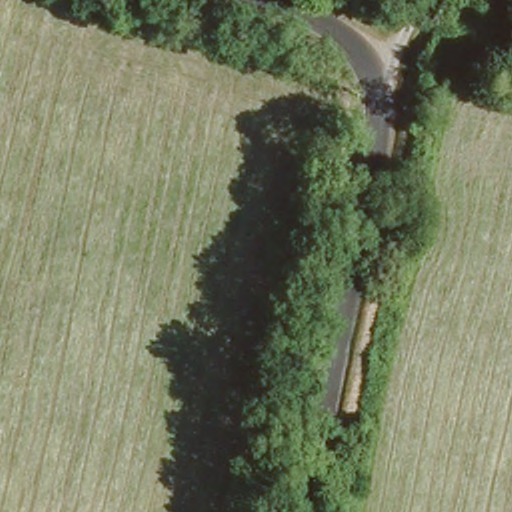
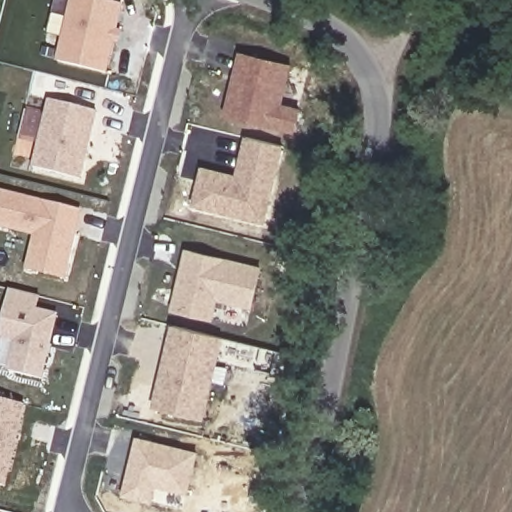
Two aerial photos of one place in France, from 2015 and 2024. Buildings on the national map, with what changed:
new [(107,74),(55,63),(69,0),(103,0),(121,4),(107,74)]
new [(290,65),(282,105),(300,110),(295,133),(223,116),(236,53),(290,65)]
new [(97,111),(82,180),(31,170),(48,100),(97,111)]
new [(201,167),(237,177),(245,137),(280,146),(265,226),(191,208),(201,167)]
new [(66,280),(25,270),(33,237),(0,228),(0,190),(84,211),(66,280)]
new [(183,250),(260,268),(252,312),(216,303),(212,322),(166,312),(183,250)]
new [(36,310),(56,315),(41,381),(5,372),(13,342),(0,339),(0,316),(6,290),(40,297),(36,310)]
new [(204,422),(151,409),(171,326),(225,339),(204,422)]
new [(0,485),(0,400),(25,405),(4,486),(0,485)]
new [(189,495),(156,487),(152,507),(121,499),(134,439),(197,454),(189,495)]

